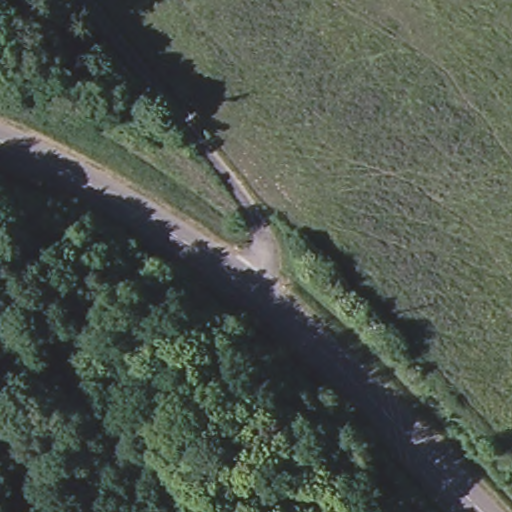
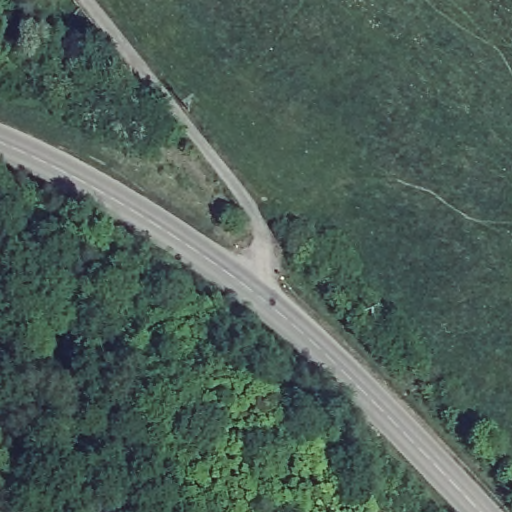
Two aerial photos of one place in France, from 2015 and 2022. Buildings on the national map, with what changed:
unchanged [(119,68),(121,69),(122,71),(124,73),(124,75),(122,78),(122,79),(120,81),(117,81),(115,81),(113,81),(111,80),(110,78),(109,75),(109,73),(110,71),(110,69),(113,67),(115,67),(117,67),(119,68)]

